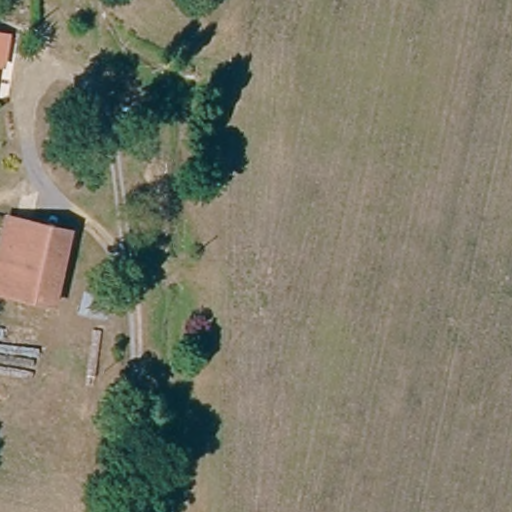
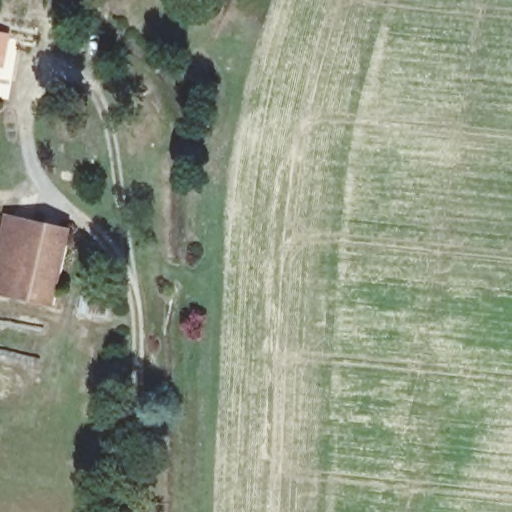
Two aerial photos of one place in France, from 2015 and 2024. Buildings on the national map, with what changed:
unchanged [(7,54),(6,65),(0,64),(0,36),(10,37),(7,54)]
unchanged [(0,293),(0,259),(9,220),(37,226),(21,298),(0,293)]
unchanged [(59,307),(21,298),(37,226),(75,235),(65,278),(59,307)]

